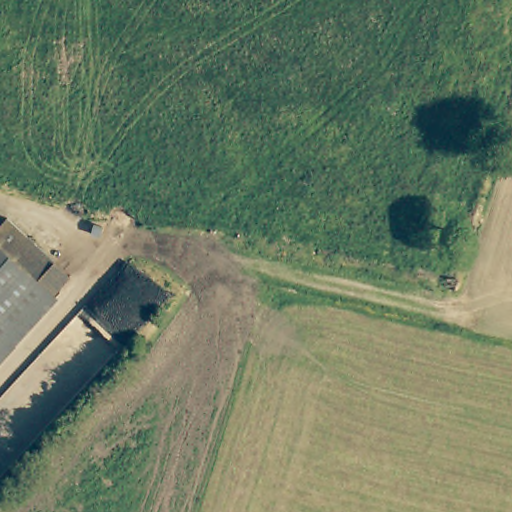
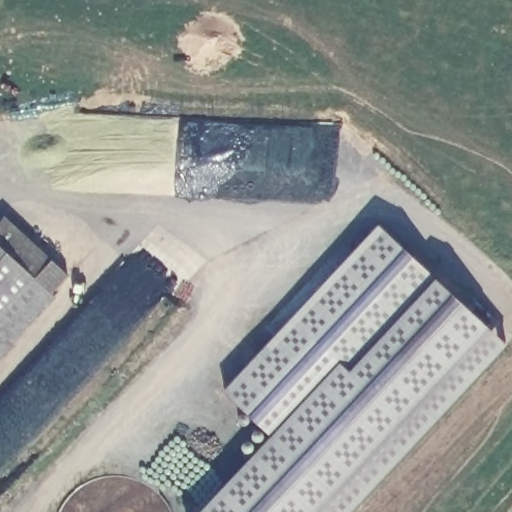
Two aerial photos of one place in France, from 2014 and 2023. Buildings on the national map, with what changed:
unchanged [(0,223),(6,216),(19,228),(28,237),(73,279),(56,297),(0,245),(0,223)]
new [(437,280),(488,326),(508,345),(354,512),(203,512),(274,436),(225,390),(380,224),(437,280)]
unchanged [(0,357),(0,245),(56,297),(0,357)]

